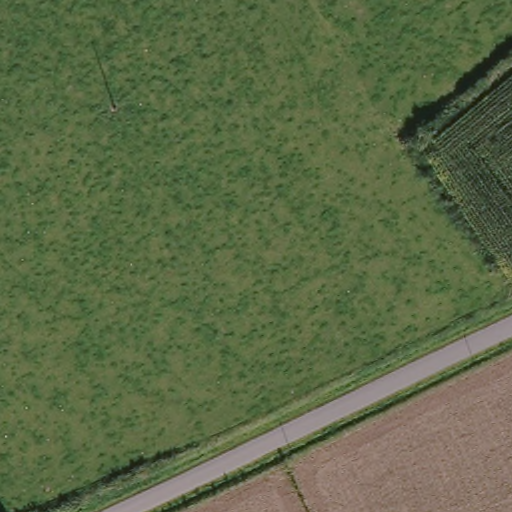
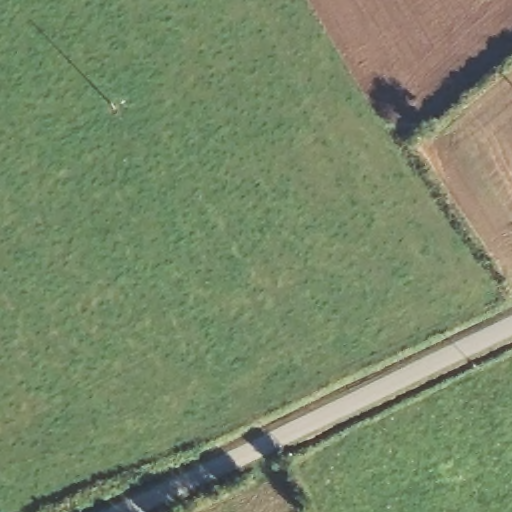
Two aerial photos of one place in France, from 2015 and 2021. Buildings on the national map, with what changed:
[]

